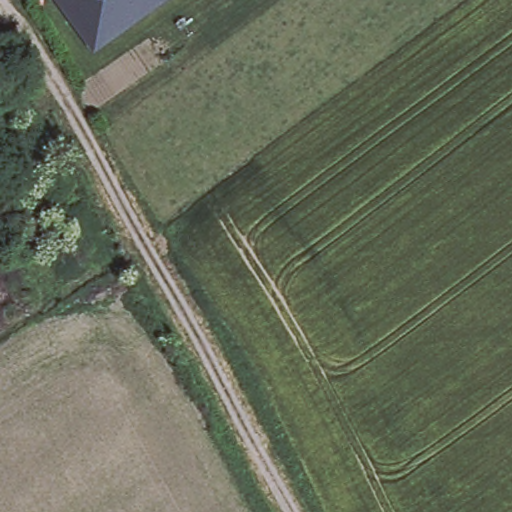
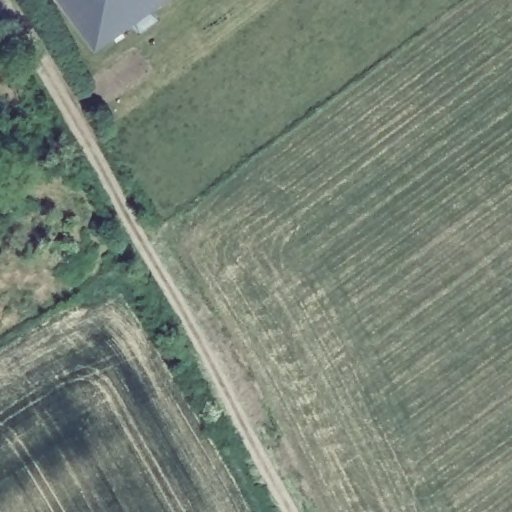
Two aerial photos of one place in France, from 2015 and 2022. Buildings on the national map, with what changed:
unchanged [(156,0),(92,49),(89,44),(56,0),(156,0)]

